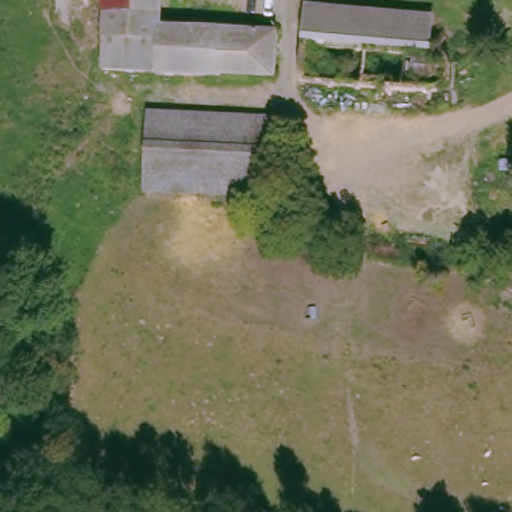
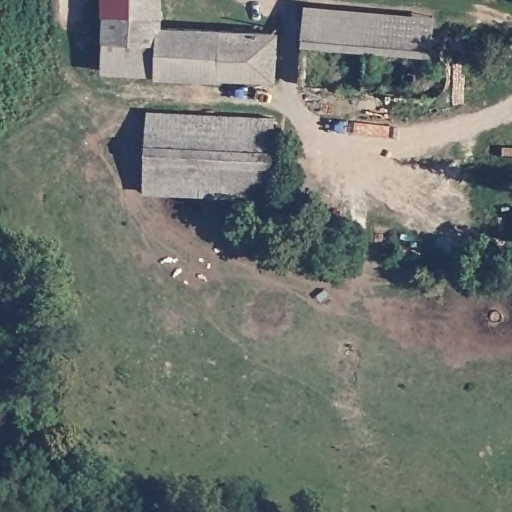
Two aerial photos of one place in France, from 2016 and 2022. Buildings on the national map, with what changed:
unchanged [(278,32),(275,79),(222,76),(222,79),(156,75),(156,72),(102,70),(102,0),(160,0),(161,27),(278,32)]
unchanged [(307,4),(437,15),(435,55),(413,52),(370,49),(302,42),(307,4)]
unchanged [(435,55),(446,56),(451,65),(452,76),(449,85),(443,90),(433,91),(410,90),(413,52),(435,55)]
unchanged [(274,117),(270,197),(144,191),(147,111),(274,117)]

